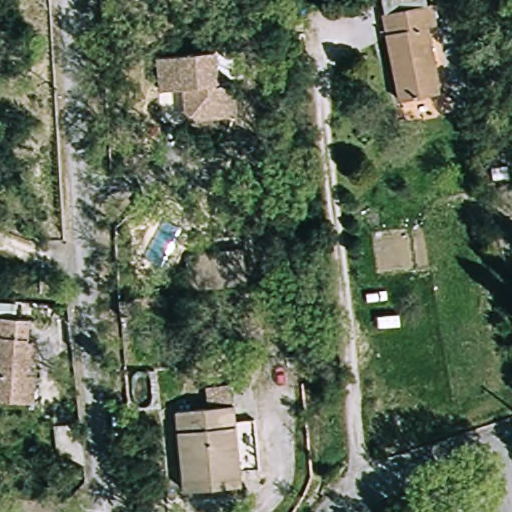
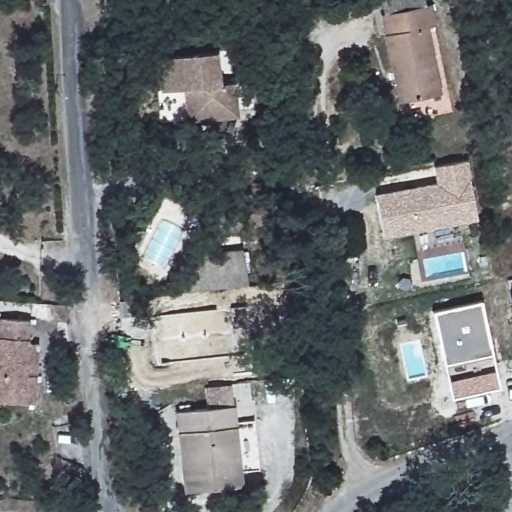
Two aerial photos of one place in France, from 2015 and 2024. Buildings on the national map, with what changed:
unchanged [(435,1),(439,26),(428,28),(438,94),(395,101),(380,0),(424,0),(425,3),(435,1)]
unchanged [(189,105),(186,89),(164,91),(159,59),(217,51),(222,83),(237,81),(241,114),(208,118),(191,120),(189,105)]
new [(436,183),(433,166),(468,160),(477,219),(383,237),(375,193),(436,183)]
unchanged [(178,262),(253,253),(257,283),(181,293),(178,262)]
new [(482,300),(499,386),(451,397),(432,311),(482,300)]
unchanged [(125,330),(124,313),(140,311),(142,328),(125,330)]
unchanged [(30,321),(25,373),(37,374),(34,404),(0,400),(0,319),(30,321)]
unchanged [(175,407),(206,405),(204,385),(232,382),(241,486),(185,491),(175,407)]

